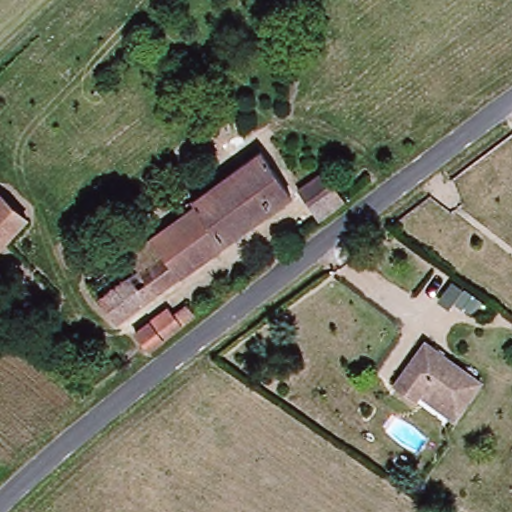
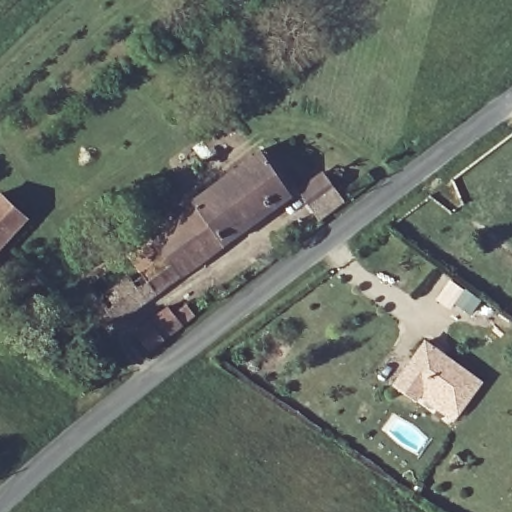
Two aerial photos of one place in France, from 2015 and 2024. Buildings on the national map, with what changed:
unchanged [(85,283),(181,217),(176,211),(253,153),(286,196),(113,323),(85,283)]
unchanged [(291,194),(316,174),(337,202),(312,220),(291,194)]
unchanged [(0,249),(0,199),(24,222),(0,249)]
unchanged [(130,337),(162,309),(169,318),(182,308),(190,317),(144,353),(130,337)]
unchanged [(418,397),(413,403),(392,385),(423,343),(479,385),(456,415),(452,421),(418,397)]

